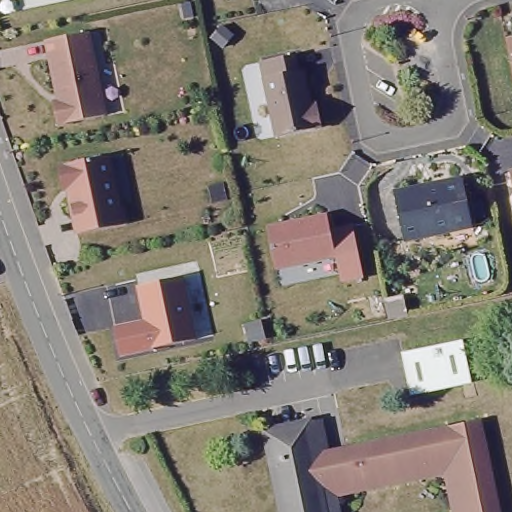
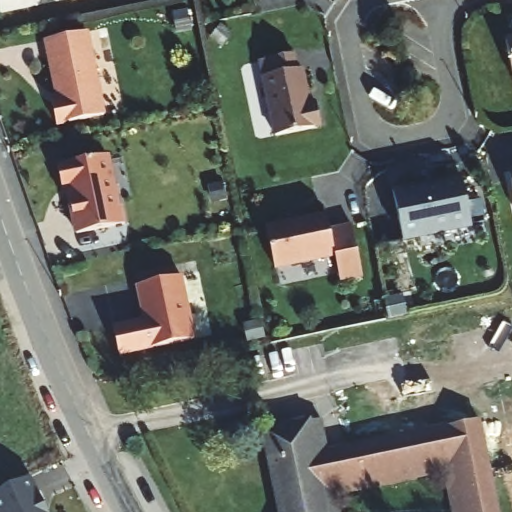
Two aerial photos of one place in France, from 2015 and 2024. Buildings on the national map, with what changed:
unchanged [(87,32),(105,117),(58,127),(52,105),(62,102),(61,96),(58,96),(45,41),(87,32)]
unchanged [(505,39),(512,37),(512,72),(505,39)]
unchanged [(294,55),(297,70),(303,70),(309,105),(316,103),(321,127),(277,136),(261,62),(294,55)]
unchanged [(108,156),(119,208),(122,208),(127,225),(79,235),(68,190),(63,190),(58,167),(108,156)]
unchanged [(512,171),(512,181),(510,171),(512,171)]
unchanged [(414,187),(417,191),(465,180),(476,225),(406,240),(397,191),(414,187)]
unchanged [(328,215),(336,256),(277,269),(267,228),(328,215)]
unchanged [(146,321),(139,286),(183,276),(197,340),(121,356),(115,328),(146,321)]
unchanged [(471,338),(481,381),(419,394),(410,352),(471,338)]
unchanged [(258,426),(316,413),(324,448),(343,444),(475,415),(497,512),(464,512),(451,453),(349,475),(330,480),(318,484),(324,512),(276,512),(258,426)]
new [(44,492),(42,493),(45,501),(44,502),(49,512),(0,512),(0,494),(36,477),(44,492)]
new [(50,511),(50,512),(49,512),(50,511)]

